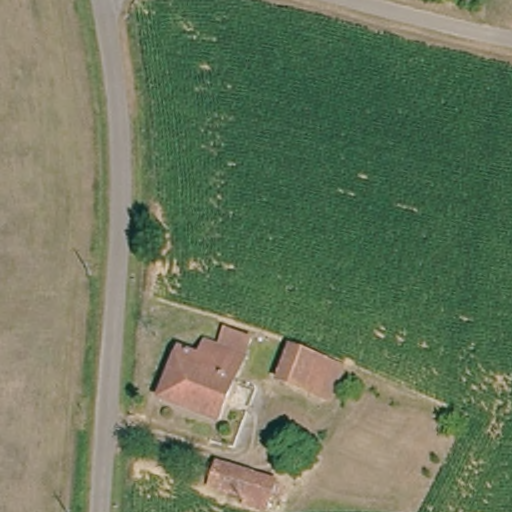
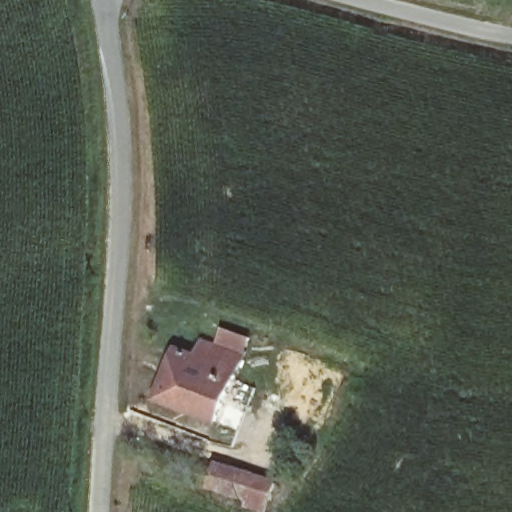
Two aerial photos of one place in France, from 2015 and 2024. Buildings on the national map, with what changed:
unchanged [(221,333),(248,342),(246,347),(216,423),(157,400),(176,352),(198,359),(204,345),(215,349),(217,343),(221,333)]
demolished [(321,392),(283,377),(296,348),(333,363),(321,392)]
unchanged [(257,512),(231,502),(233,497),(205,486),(212,468),(215,462),(244,472),(243,477),(269,487),(260,512),(257,512)]

